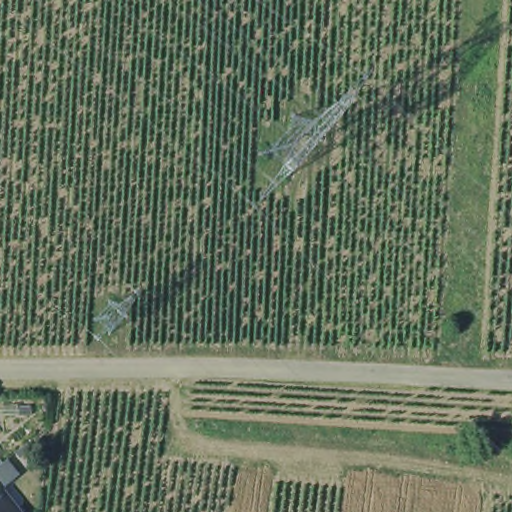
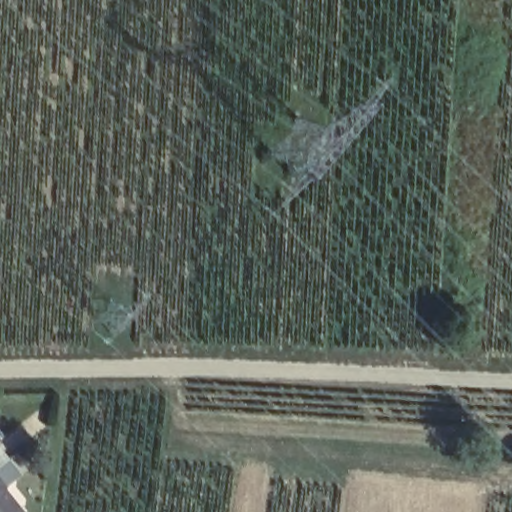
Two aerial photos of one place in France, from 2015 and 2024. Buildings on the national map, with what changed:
unchanged [(8,489),(3,494),(17,512),(0,512),(0,479),(8,489)]

